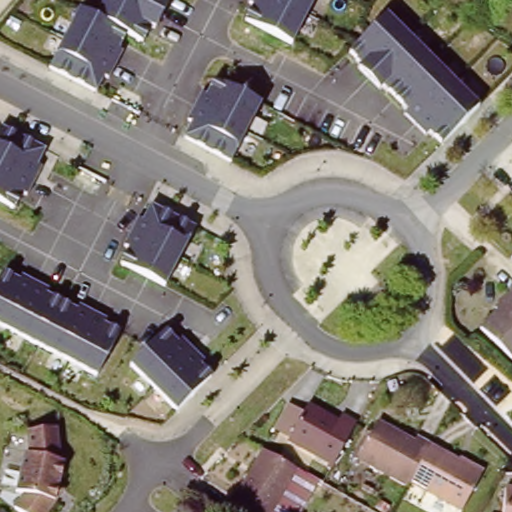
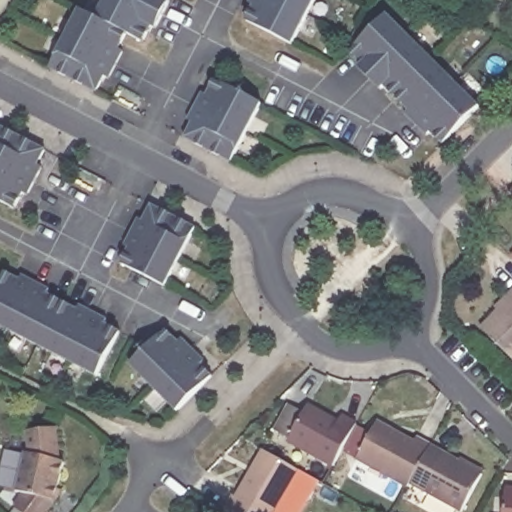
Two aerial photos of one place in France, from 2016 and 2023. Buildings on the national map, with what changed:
unchanged [(155,31),(150,29),(142,41),(126,33),(116,54),(121,56),(106,82),(100,79),(93,90),(50,64),(80,6),(97,13),(103,0),(165,0),(170,3),(155,31)]
unchanged [(245,18),(250,5),(247,4),(249,0),(313,0),(292,43),(245,18)]
unchanged [(478,105),(439,142),(430,132),(422,136),(401,113),(406,106),(385,85),(380,89),(356,65),(365,55),(355,46),(385,14),(478,105)]
unchanged [(262,100),(228,159),(183,134),(190,119),(187,116),(200,91),(207,94),(212,82),(262,100)]
unchanged [(45,150),(38,164),(43,166),(25,196),(22,194),(15,204),(0,196),(0,127),(45,150)]
unchanged [(198,222),(168,285),(117,263),(124,246),(120,244),(134,213),(140,215),(147,199),(198,222)]
unchanged [(512,258),(512,260),(511,259),(512,258)]
unchanged [(119,332),(96,376),(0,326),(0,282),(7,270),(119,332)]
unchanged [(497,313),(493,309),(512,291),(512,362),(480,329),(497,313)]
unchanged [(214,374),(177,404),(133,359),(168,329),(214,374)]
unchanged [(325,466),(280,439),(300,404),(330,421),(334,416),(350,424),(325,466)]
unchanged [(358,456),(379,419),(410,437),(413,431),(427,439),(426,440),(405,477),(402,482),(358,456)]
unchanged [(59,427),(64,458),(55,497),(43,512),(19,512),(6,503),(15,487),(25,448),(25,432),(59,427)]
unchanged [(477,470),(456,507),(405,477),(426,440),(477,470)]
unchanged [(233,496),(236,498),(263,450),(299,471),(275,512),(224,512),(233,496)]
unchanged [(500,487),(512,488),(512,512),(499,512),(500,487)]

